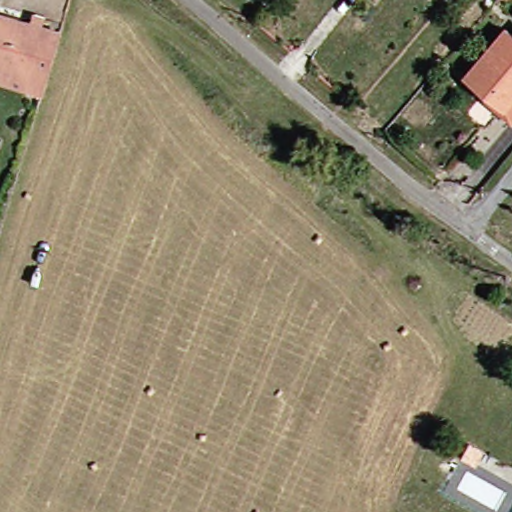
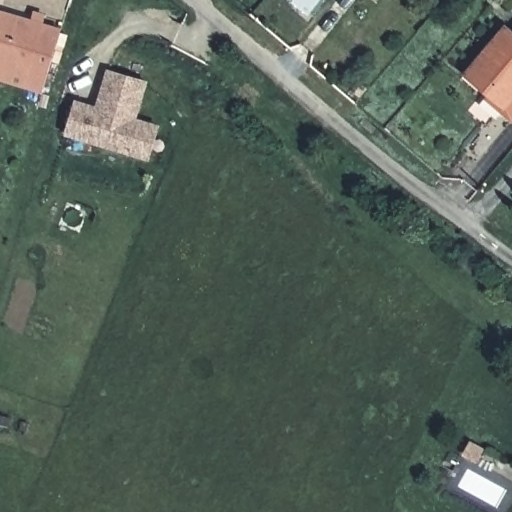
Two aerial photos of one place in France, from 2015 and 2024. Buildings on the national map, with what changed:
unchanged [(56,31),(36,91),(15,85),(0,80),(0,10),(56,31)]
unchanged [(480,107),(485,99),(457,75),(496,29),(511,42),(512,40),(512,117),(505,125),(480,107)]
new [(74,102),(96,109),(107,71),(144,82),(132,120),(140,121),(130,152),(65,134),(72,109),(74,102)]

